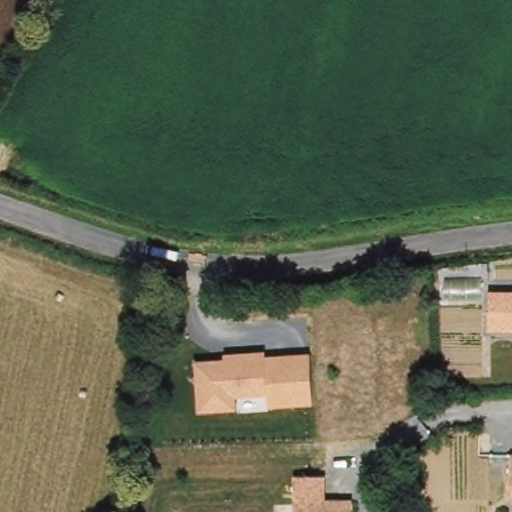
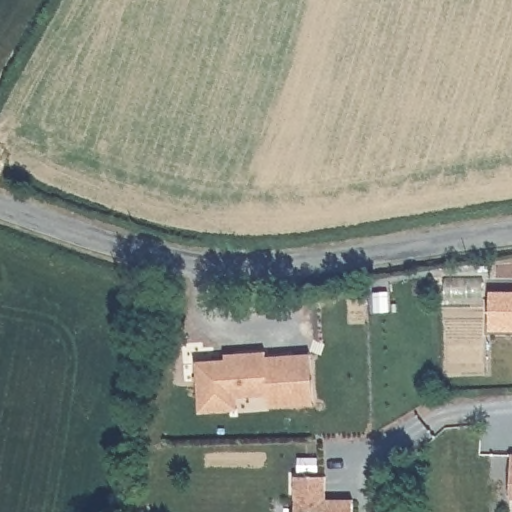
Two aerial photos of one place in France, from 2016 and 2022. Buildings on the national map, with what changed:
unchanged [(487,331),(488,290),(512,291),(512,331),(487,331)]
unchanged [(315,404),(267,406),(267,395),(236,398),(237,408),(199,412),(196,362),(224,359),(224,354),(266,351),(267,356),(310,353),(315,404)]
unchanged [(333,476),(332,500),(360,500),(360,507),(360,512),(302,512),(302,475),(314,475),(333,476)]

